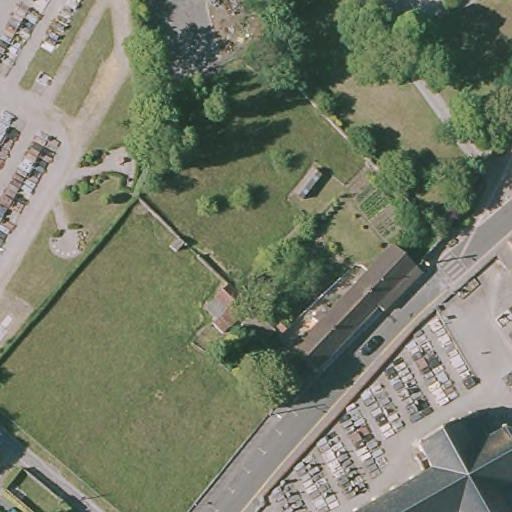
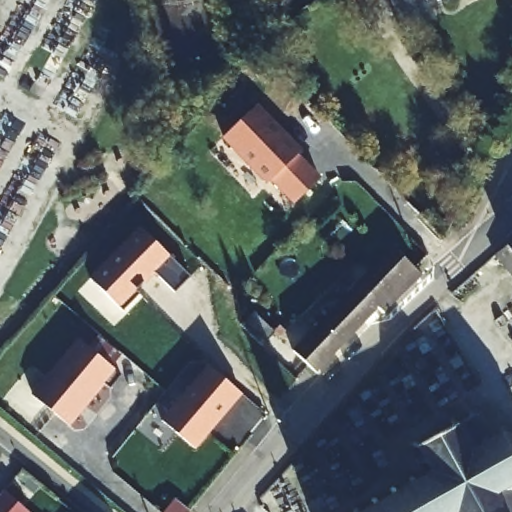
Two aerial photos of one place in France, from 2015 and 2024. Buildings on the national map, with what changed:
new [(272,179),(267,185),(223,138),(259,104),(302,150),(297,155),(320,177),(294,202),(272,179)]
demolished [(144,222),(129,208),(138,198),(154,213),(144,222)]
new [(185,276),(182,283),(171,278),(172,273),(160,268),(145,285),(137,277),(131,283),(138,290),(120,308),(89,277),(140,226),(170,256),(185,276)]
demolished [(182,240),(174,248),(170,245),(177,236),(182,240)]
unchanged [(506,244),(512,240),(512,254),(506,244)]
unchanged [(421,274),(392,304),(384,311),(379,306),(356,329),(350,336),(321,365),(316,370),(312,366),(310,365),(284,339),(302,321),(312,330),(319,323),(312,317),(326,304),(332,309),(371,271),(377,265),(379,262),(394,247),(415,268),(421,274)]
demolished [(221,333),(211,324),(217,318),(205,306),(227,284),(230,287),(249,305),(221,333)]
demolished [(259,340),(239,322),(252,309),(272,327),(259,340)]
demolished [(280,324),(282,326),(285,329),(279,335),(275,330),(280,324)]
new [(80,340),(122,374),(111,388),(104,383),(69,426),(33,397),(80,340)]
new [(167,425),(212,370),(246,396),(197,454),(167,425)]
unchanged [(359,506),(362,504),(366,510),(381,502),(377,496),(381,494),(385,500),(399,492),(396,486),(400,484),(403,489),(419,481),(416,475),(420,473),(423,478),(439,469),(434,459),(427,463),(420,450),(426,446),(422,438),(416,437),(417,433),(424,435),(459,415),(456,409),(460,407),(463,413),(475,407),(474,402),(477,401),(479,404),(484,402),(485,404),(480,407),(496,437),(509,431),(512,423),(512,512),(463,512),(462,510),(460,512),(361,512),(359,506)]

